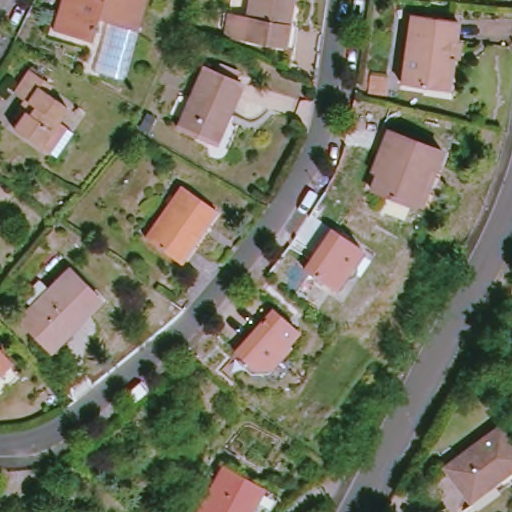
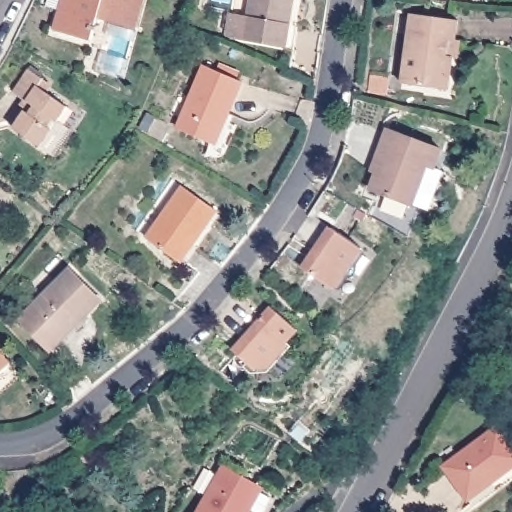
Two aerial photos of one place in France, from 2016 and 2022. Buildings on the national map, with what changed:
unchanged [(95,16),(89,37),(51,28),(58,0),(135,0),(129,25),(95,16)]
unchanged [(247,0),(287,0),(283,22),(290,24),(286,45),(222,34),(225,13),(244,16),(247,0)]
unchanged [(455,21),(451,42),(446,41),(443,57),(449,59),(446,80),(422,75),(419,88),(396,84),(408,14),(455,21)]
unchanged [(237,78),(225,110),(230,111),(218,141),(174,125),(196,64),(237,78)]
unchanged [(24,112),(28,115),(33,107),(11,95),(24,71),(39,80),(34,88),(66,107),(43,147),(13,130),(24,112)]
unchanged [(411,203),(368,189),(382,146),(378,145),(384,127),(442,146),(435,168),(422,206),(411,203)]
unchanged [(215,209),(180,259),(145,235),(181,185),(215,209)]
unchanged [(362,250),(335,290),(303,270),(330,229),(362,250)]
unchanged [(100,298),(49,347),(14,312),(65,262),(100,298)]
unchanged [(293,326),(299,331),(294,338),(268,368),(256,369),(236,352),(273,309),(293,326)]
unchanged [(6,361),(0,367),(0,356),(6,361)]
unchanged [(436,466),(493,426),(512,454),(512,464),(486,482),(459,500),(454,493),(436,466)]
unchanged [(269,490),(256,512),(245,512),(244,511),(244,512),(190,512),(209,478),(218,462),(224,465),(269,490)]

